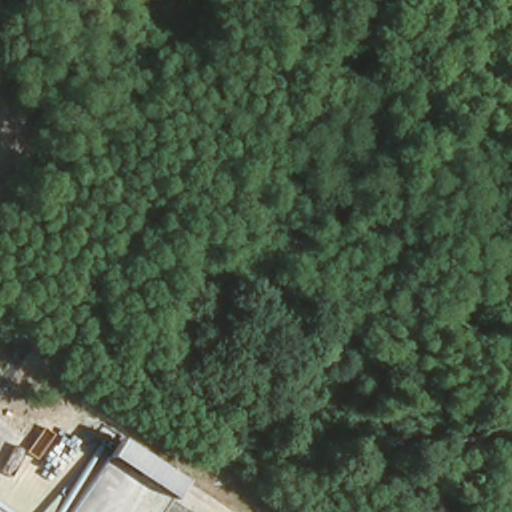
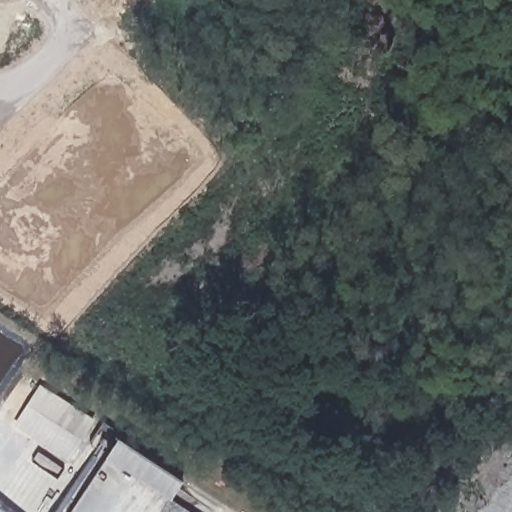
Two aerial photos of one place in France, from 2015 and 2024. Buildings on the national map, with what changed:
new [(15,426),(41,385),(95,421),(69,461),(15,426)]
unchanged [(171,501),(108,459),(120,439),(185,481),(171,501)]

